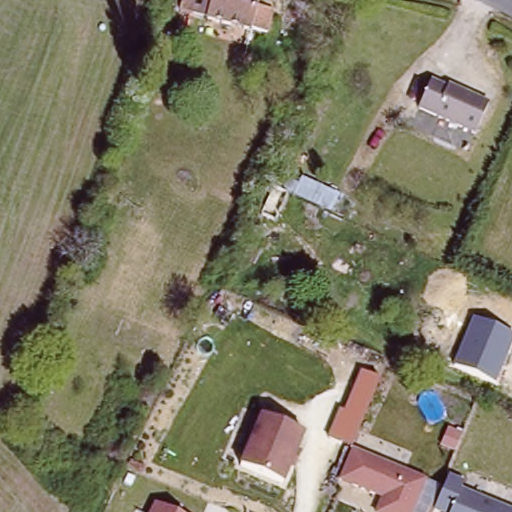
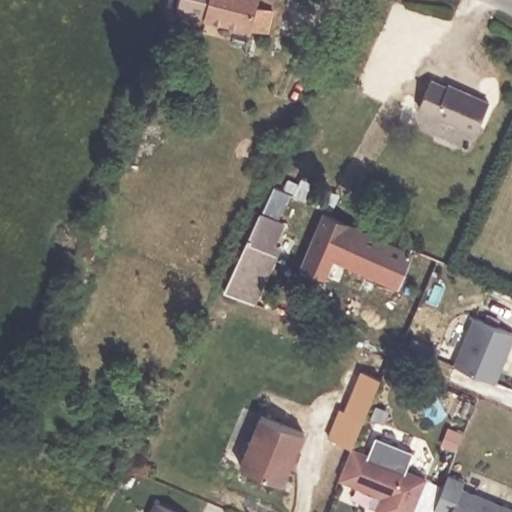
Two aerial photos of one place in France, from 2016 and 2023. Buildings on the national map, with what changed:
unchanged [(203,21),(204,17),(177,10),(180,0),(268,0),(265,11),(270,13),(263,38),(203,21)]
unchanged [(415,104),(428,76),(446,84),(446,83),(485,100),(472,131),(415,104)]
new [(273,186),(281,189),(286,177),(297,182),(300,176),(340,194),(331,211),(290,194),(278,219),(285,223),(275,246),(280,248),(256,302),(225,292),(273,186)]
new [(331,261),(325,275),(301,266),(324,212),(413,250),(397,289),(331,261)]
unchanged [(471,317),(512,334),(512,343),(496,383),(453,366),(471,317)]
unchanged [(327,438),(339,406),(344,407),(359,369),(380,375),(351,447),(327,438)]
unchanged [(303,433),(280,485),(237,465),(259,413),(303,433)]
unchanged [(424,477),(408,512),(378,512),(375,511),(382,495),(339,474),(351,447),(424,477)]
unchanged [(465,479),(463,487),(512,507),(512,512),(439,512),(434,510),(447,472),(465,479)]
unchanged [(154,499),(180,512),(147,512),(154,500),(154,499)]

